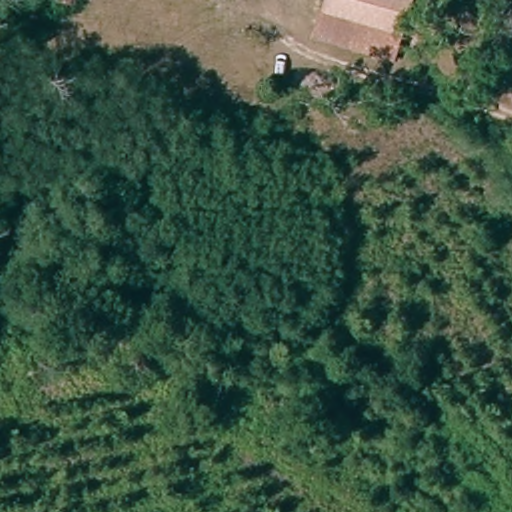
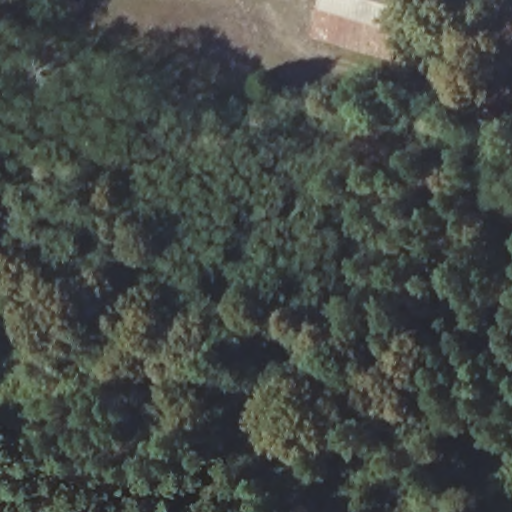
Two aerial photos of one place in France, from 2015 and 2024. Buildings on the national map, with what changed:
unchanged [(387,65),(310,42),(322,0),(407,0),(387,65)]

